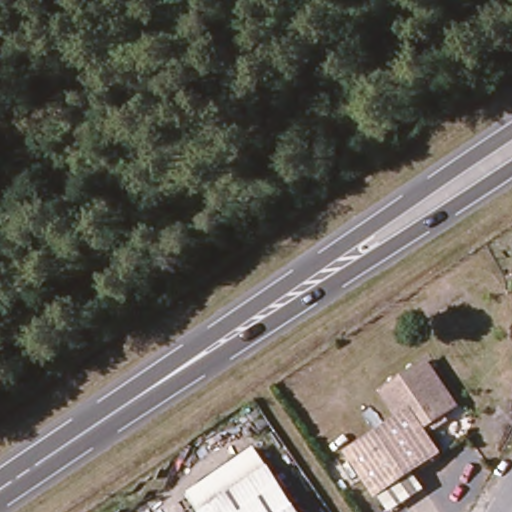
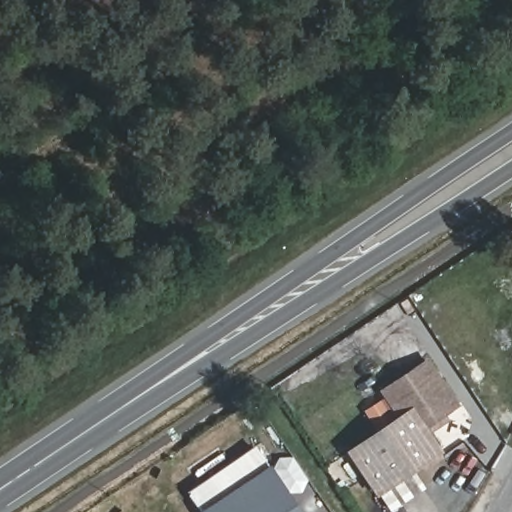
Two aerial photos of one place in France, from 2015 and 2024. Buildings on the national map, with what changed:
unchanged [(457,400),(425,421),(412,402),(398,411),(383,387),(427,356),(457,400)]
unchanged [(388,505),(377,488),(350,448),(411,406),(439,447),(411,466),(422,482),(388,505)]
unchanged [(255,445),(271,469),(208,512),(202,512),(189,491),(255,445)]
unchanged [(289,496),(266,512),(208,512),(271,469),(289,496)]
unchanged [(300,512),(266,512),(289,496),(300,512)]

